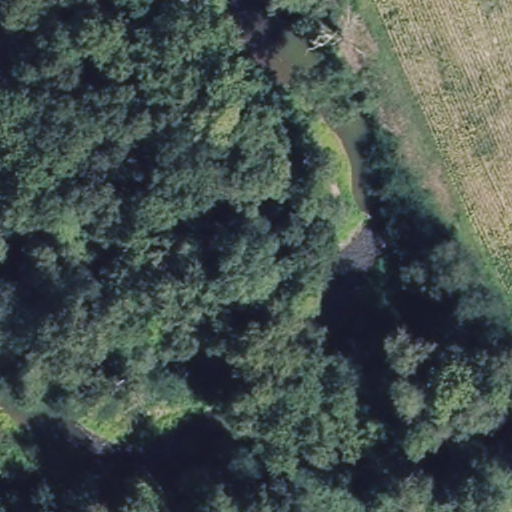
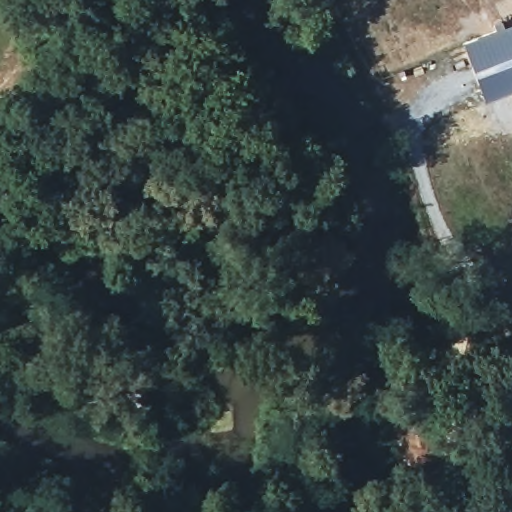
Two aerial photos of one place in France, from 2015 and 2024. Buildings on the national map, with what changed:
new [(486,101),(463,42),(512,24),(512,92),(486,101)]

